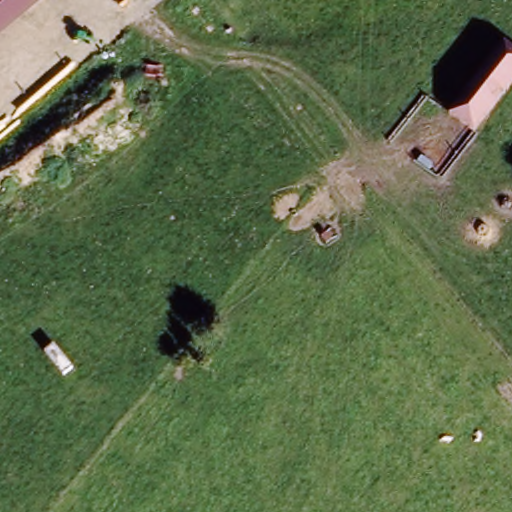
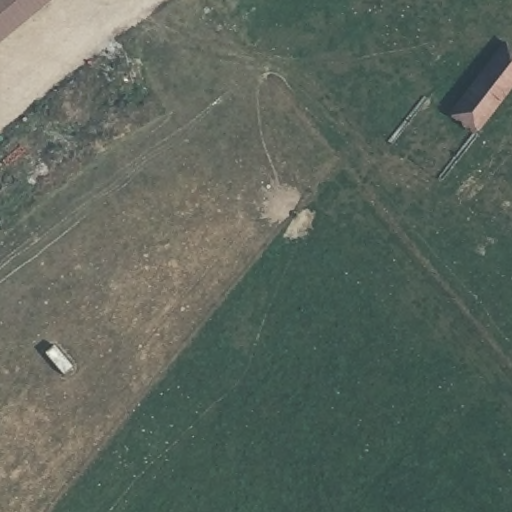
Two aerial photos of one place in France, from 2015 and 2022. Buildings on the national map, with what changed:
unchanged [(0,0),(52,0),(0,42),(0,0)]
unchanged [(502,41),(512,49),(512,89),(475,139),(444,116),(502,41)]

